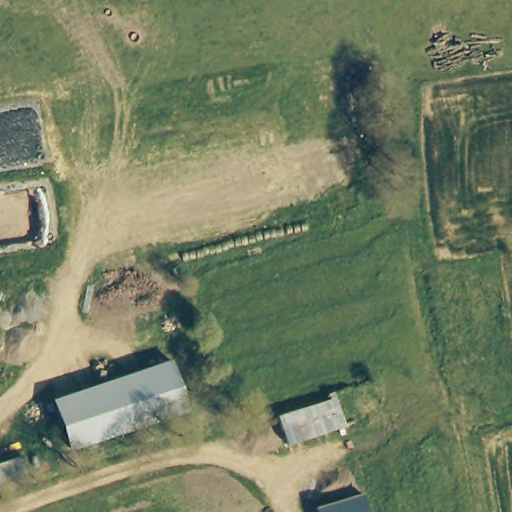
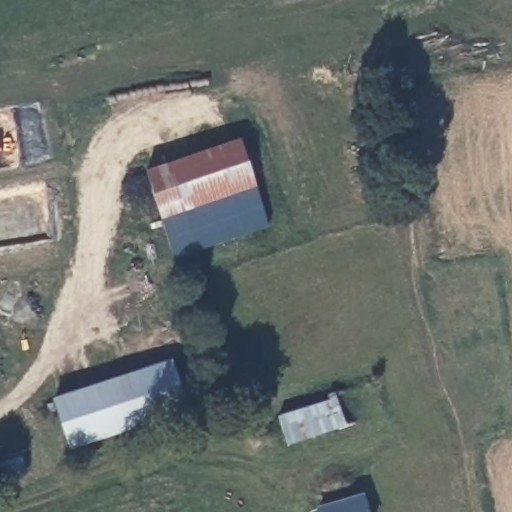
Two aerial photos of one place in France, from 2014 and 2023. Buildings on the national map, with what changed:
new [(269,227),(175,260),(146,171),(242,139),(269,227)]
unchanged [(47,400),(164,361),(182,408),(65,448),(47,400)]
new [(288,446),(278,416),(329,400),(327,395),(336,392),(347,426),(288,446)]
new [(317,512),(316,507),(364,493),(370,512),(317,512)]

